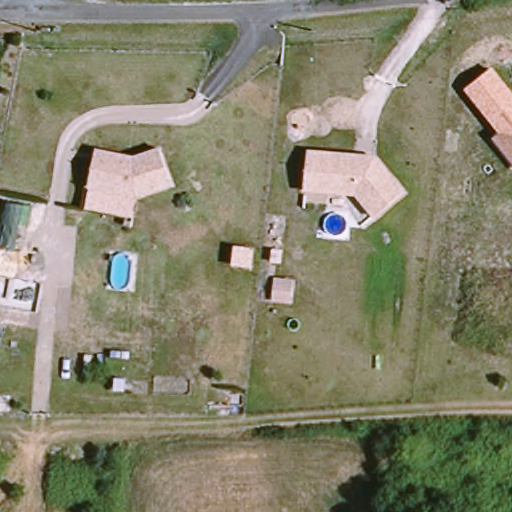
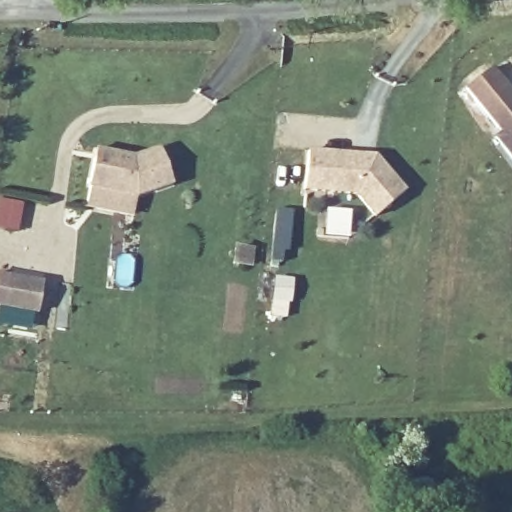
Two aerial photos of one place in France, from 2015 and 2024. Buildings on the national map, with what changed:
unchanged [(493,67),(512,93),(512,121),(496,132),(464,90),(493,67)]
unchanged [(512,162),(492,136),(512,121),(512,162)]
unchanged [(82,209),(85,189),(92,151),(130,159),(156,150),(168,186),(133,199),(130,217),(82,209)]
unchanged [(304,191),(306,152),(373,157),(405,190),(376,216),(356,194),(304,191)]
unchanged [(244,276),(227,275),(229,260),(246,262),(244,276)]
new [(42,281),(37,313),(0,307),(0,274),(42,281)]

